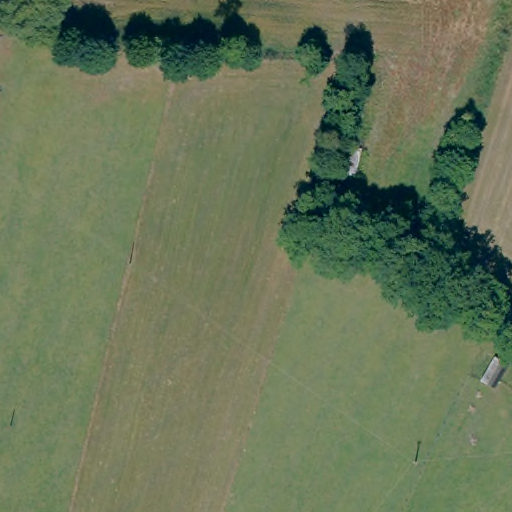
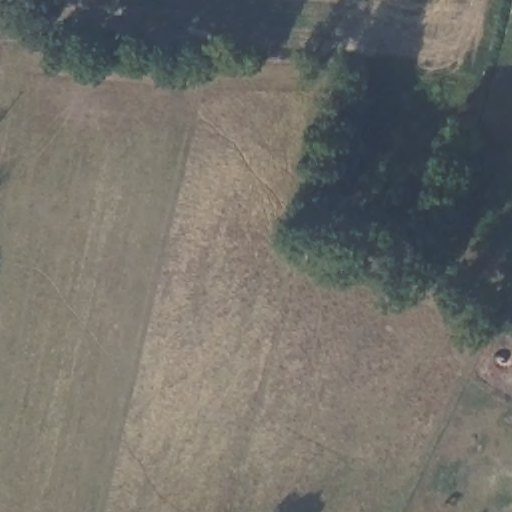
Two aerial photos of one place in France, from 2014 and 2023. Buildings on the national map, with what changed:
unchanged [(482,380),(495,358),(509,366),(495,388),(482,380)]

